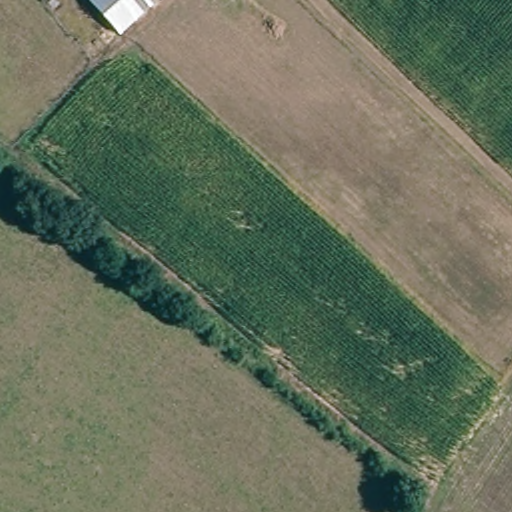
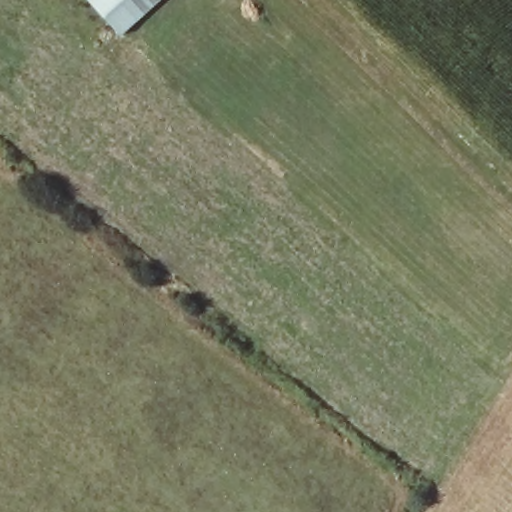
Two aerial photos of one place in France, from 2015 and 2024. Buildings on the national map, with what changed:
unchanged [(103,0),(151,0),(127,24),(103,0)]

